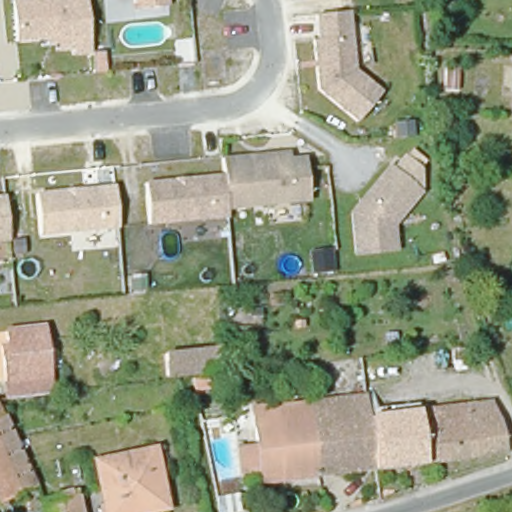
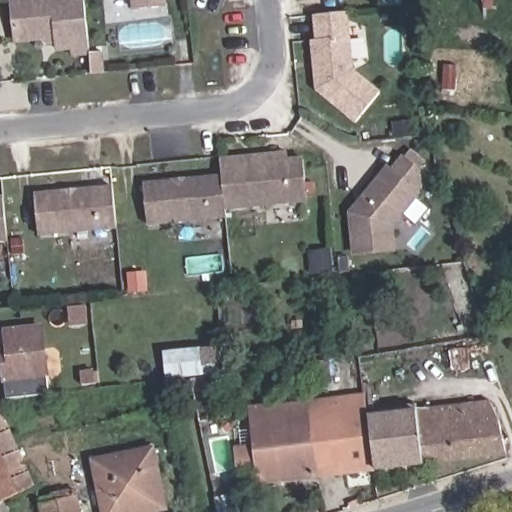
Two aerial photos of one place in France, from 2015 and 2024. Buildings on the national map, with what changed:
unchanged [(46,38),(16,41),(12,2),(26,0),(84,0),(90,53),(74,55),(73,48),(57,49),(57,42),(46,43),(46,38)]
unchanged [(170,6),(139,9),(138,0),(169,0),(170,6)]
unchanged [(384,96),(361,125),(322,94),(319,71),(318,65),(316,44),(321,44),(319,19),(350,16),(357,74),(384,96)]
unchanged [(308,158),(313,199),(231,207),(228,176),(227,165),(226,163),(226,158),(292,151),(293,158),(293,159),(308,158)]
unchanged [(418,192),(391,223),(394,248),(356,251),(352,211),(389,167),(418,192)]
unchanged [(228,176),(231,207),(232,216),(154,224),(150,184),(228,176)]
unchanged [(114,187),(118,227),(40,235),(35,195),(114,187)]
unchanged [(5,198),(9,240),(0,240),(0,198),(5,198)]
unchanged [(39,338),(45,387),(3,393),(0,367),(0,357),(7,356),(6,342),(39,338)]
unchanged [(218,372),(218,373),(168,378),(165,354),(215,348),(218,372)]
unchanged [(311,406),(371,400),(374,422),(380,474),(321,482),(311,406)]
unchanged [(374,422),(493,405),(510,458),(380,474),(374,422)]
unchanged [(249,413),(311,406),(321,482),(284,487),(282,478),(260,481),(260,478),(249,480),(244,480),(239,453),(242,453),(255,451),(249,413)]
unchanged [(38,489),(0,505),(0,411),(38,489)]
unchanged [(130,512),(108,512),(99,459),(156,450),(164,499),(166,508),(134,512),(130,512)]
unchanged [(45,512),(44,500),(82,495),(84,512),(45,512)]

